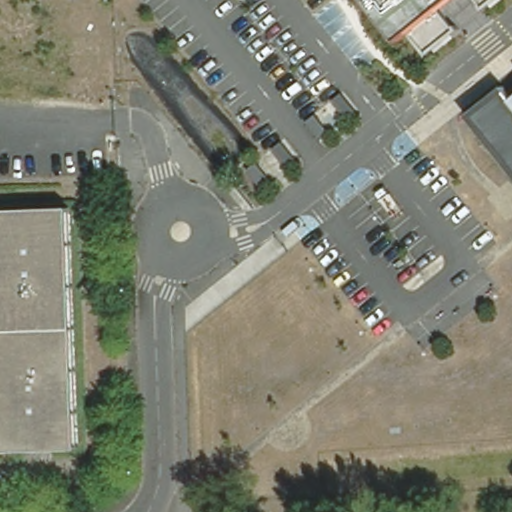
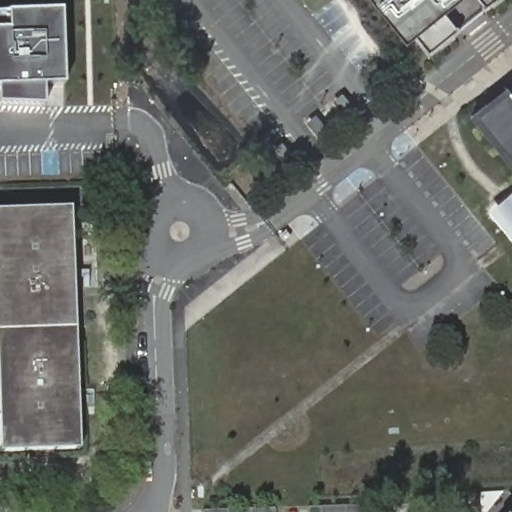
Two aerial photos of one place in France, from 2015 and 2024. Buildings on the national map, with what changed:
unchanged [(439,10),(460,30),(427,57),(409,39),(403,39),(370,0),(452,0),(431,14),(439,10)]
unchanged [(478,0),(494,0),(484,8),(478,0)]
new [(63,84),(43,86),(44,106),(0,105),(0,12),(61,10),(63,84)]
unchanged [(512,176),(465,117),(512,79),(512,176)]
new [(512,241),(488,211),(512,190),(512,241)]
unchanged [(41,359),(0,360),(0,210),(71,207),(80,449),(45,450),(41,359)]
unchanged [(0,452),(0,360),(41,359),(45,450),(0,452)]

